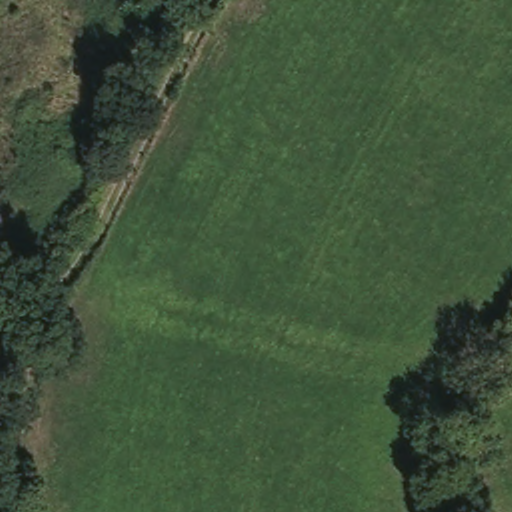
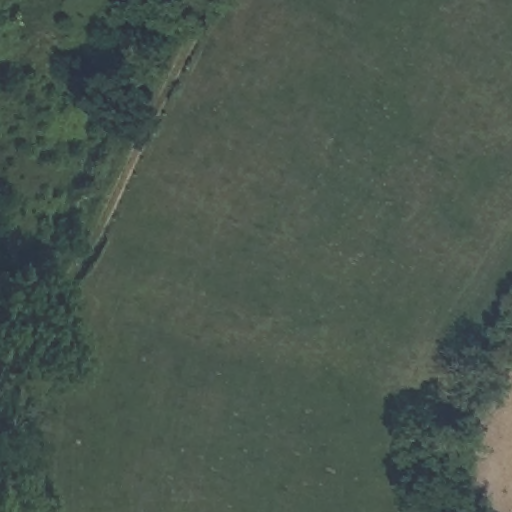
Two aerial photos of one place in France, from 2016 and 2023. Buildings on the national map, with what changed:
unchanged [(433,357),(425,378),(405,372),(411,350),(433,357)]

